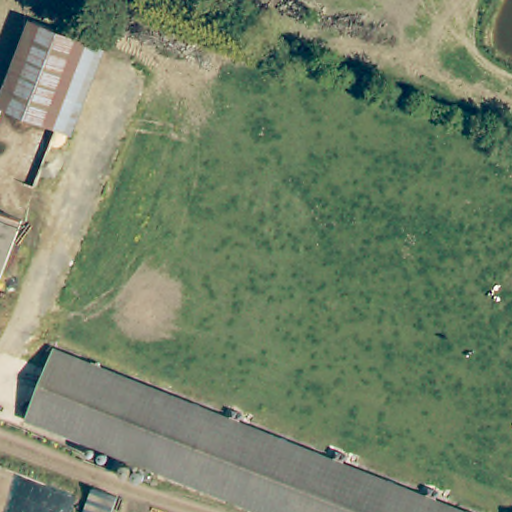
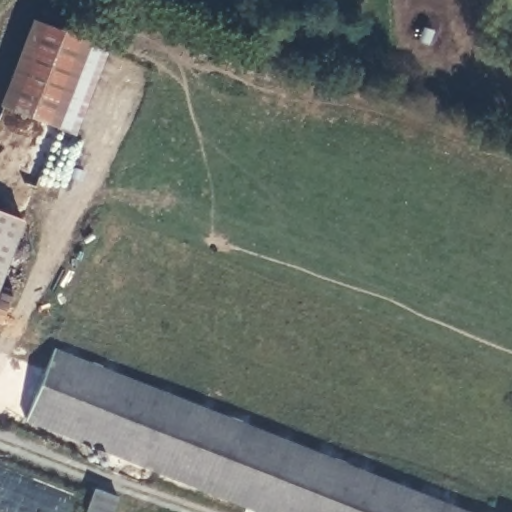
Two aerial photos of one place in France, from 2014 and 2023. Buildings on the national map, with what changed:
unchanged [(37,17),(94,41),(60,125),(2,101),(37,17)]
unchanged [(25,222),(0,285),(0,211),(25,222)]
unchanged [(263,427),(479,512),(276,512),(111,448),(24,415),(53,345),(263,427)]

